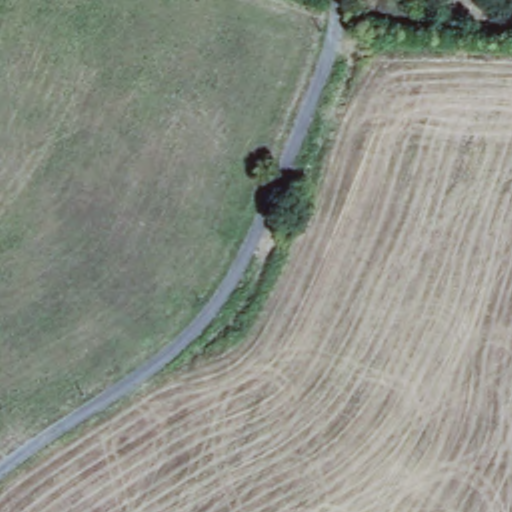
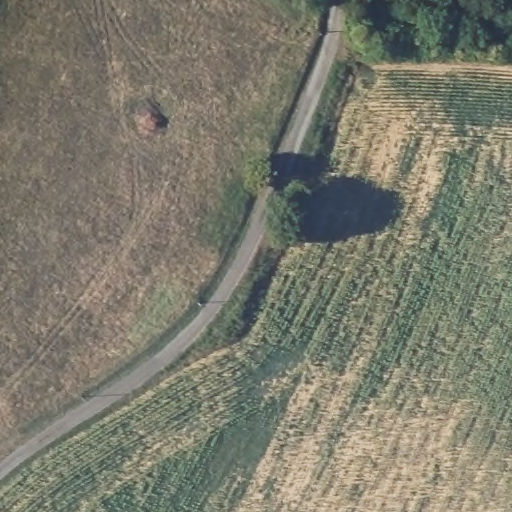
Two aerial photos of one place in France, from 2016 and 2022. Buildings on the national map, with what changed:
[]

